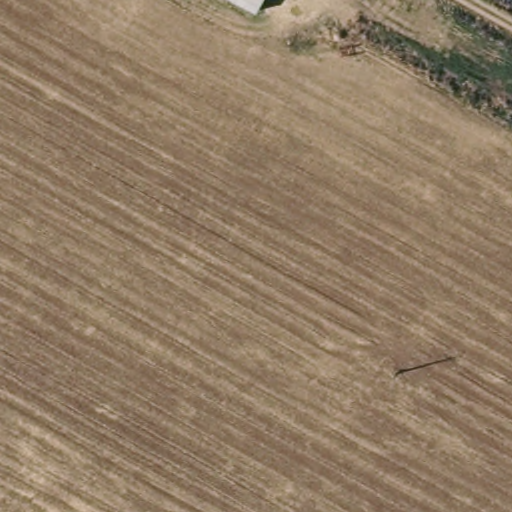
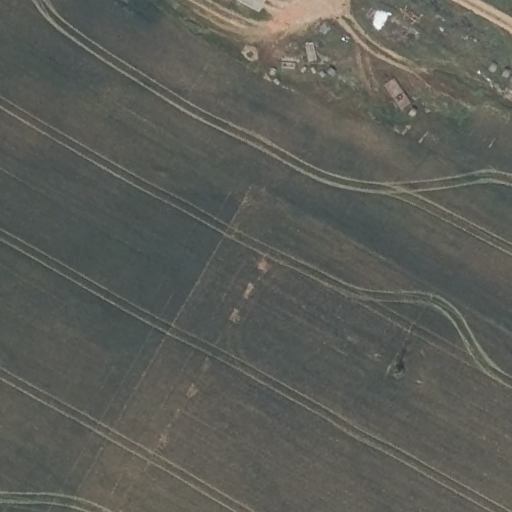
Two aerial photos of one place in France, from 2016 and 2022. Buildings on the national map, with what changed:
unchanged [(235,0),(262,0),(257,11),(235,0)]

